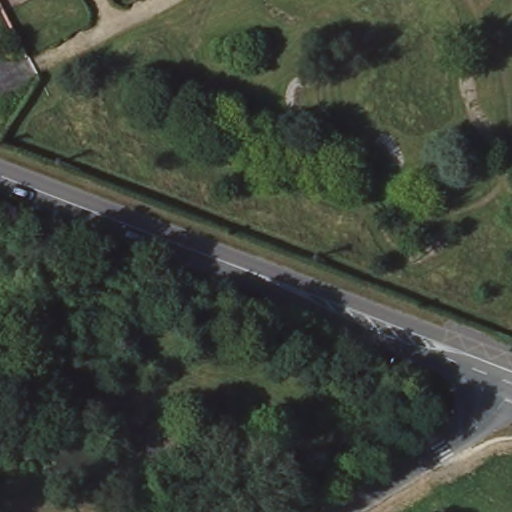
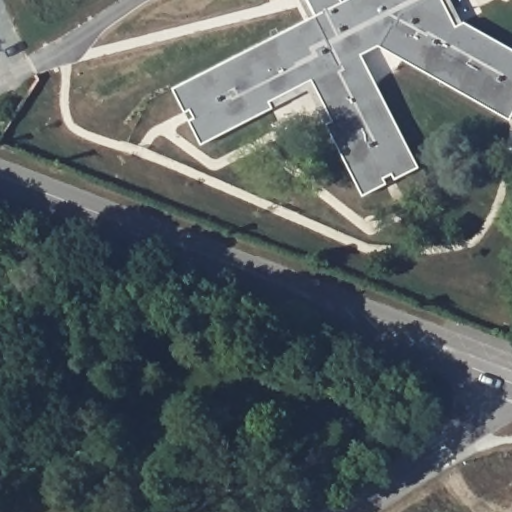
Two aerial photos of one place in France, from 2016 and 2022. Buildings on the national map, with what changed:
new [(307,0),(441,0),(453,25),(461,21),(512,46),(512,112),(508,120),(378,46),(361,55),(418,167),(363,195),(309,91),(201,143),(173,87),(315,16),(307,0)]

